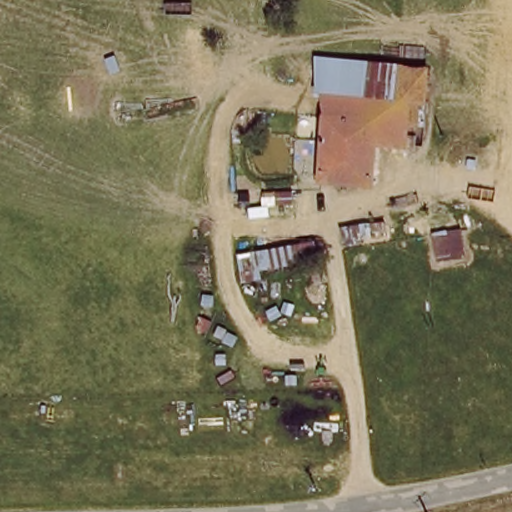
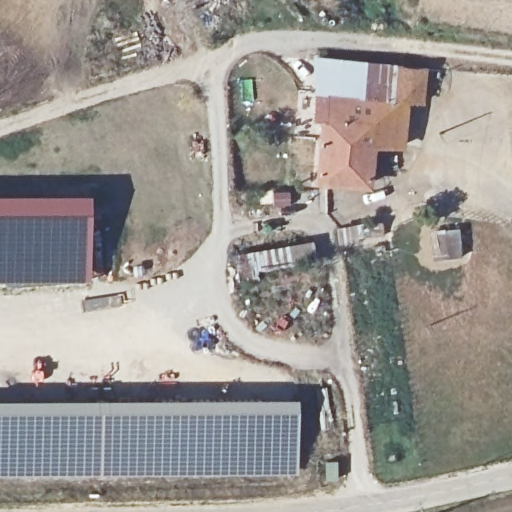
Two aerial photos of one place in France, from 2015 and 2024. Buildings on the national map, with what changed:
unchanged [(421,63),(416,139),(375,137),(372,173),(316,169),(322,113),(313,56),(421,63)]
new [(91,190),(90,280),(0,281),(0,190),(91,190)]
unchanged [(303,245),(307,270),(258,278),(256,254),(303,245)]
new [(299,395),(299,475),(113,476),(0,475),(0,395),(299,395)]

